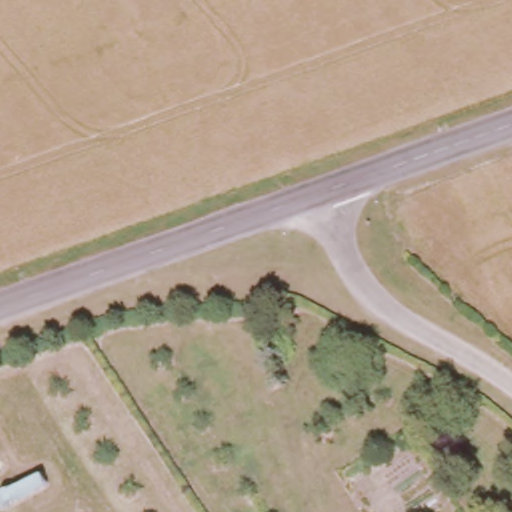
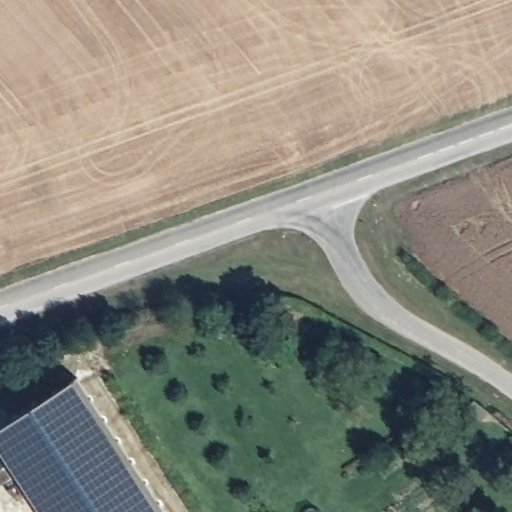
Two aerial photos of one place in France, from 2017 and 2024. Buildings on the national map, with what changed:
new [(0,436),(0,426),(80,373),(169,512),(49,512),(0,436)]

